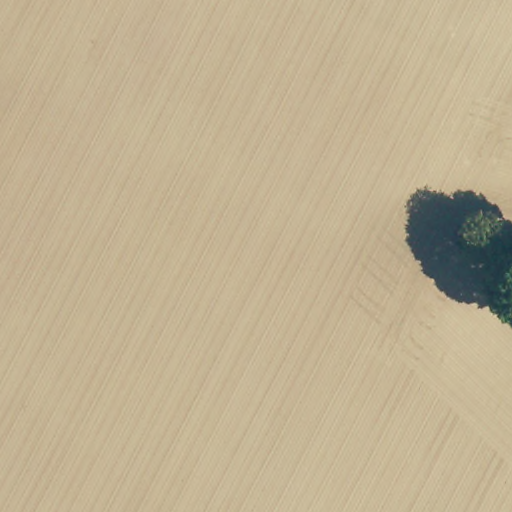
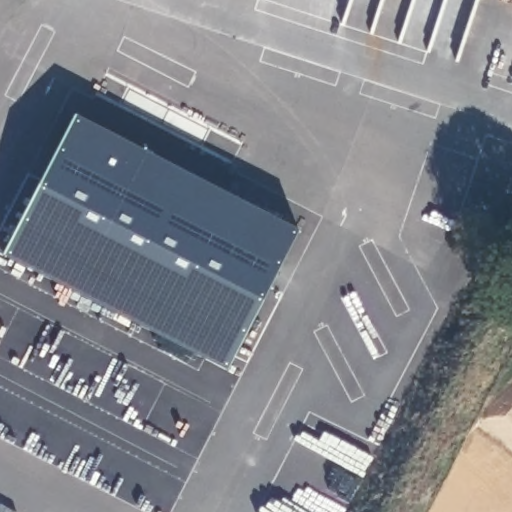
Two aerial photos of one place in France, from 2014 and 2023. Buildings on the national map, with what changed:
new [(71,114),(296,229),(225,368),(0,252),(71,114)]

